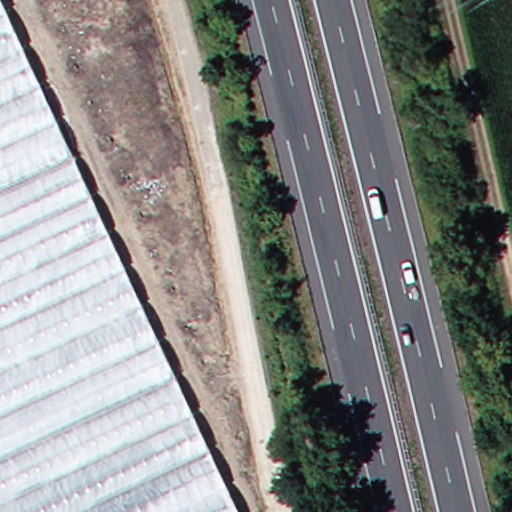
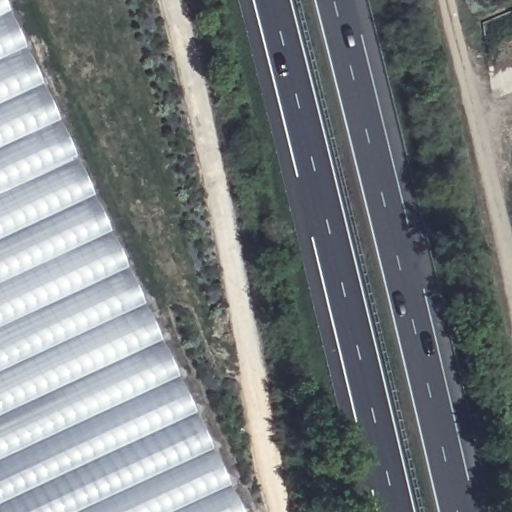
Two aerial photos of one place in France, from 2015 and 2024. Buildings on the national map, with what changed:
unchanged [(0,0),(4,0),(244,512),(0,512),(0,0)]

